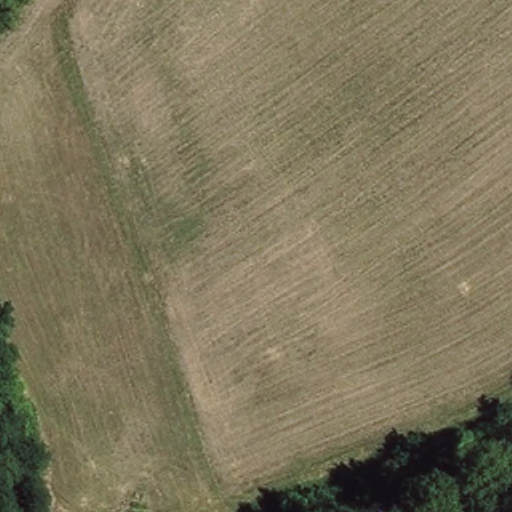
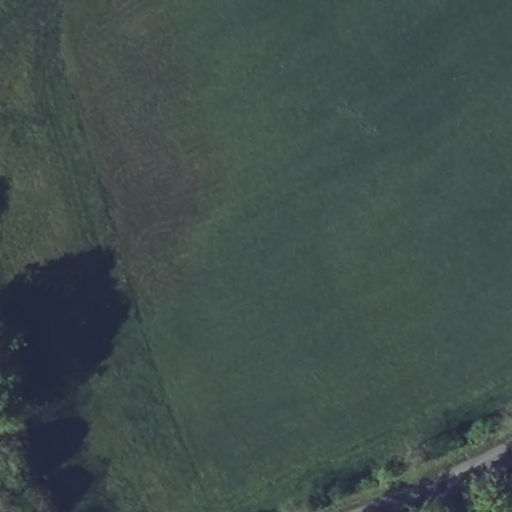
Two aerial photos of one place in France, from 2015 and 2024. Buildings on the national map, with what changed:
[]

